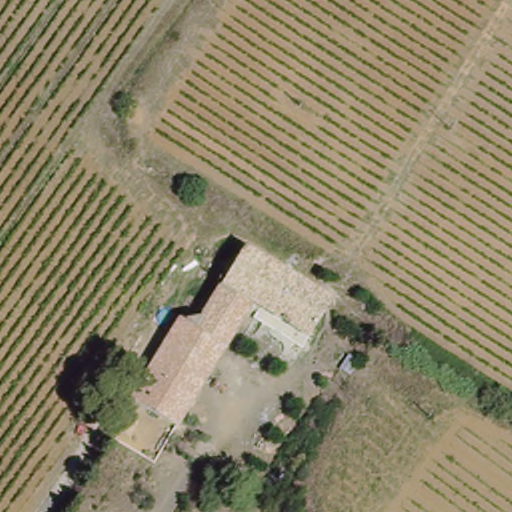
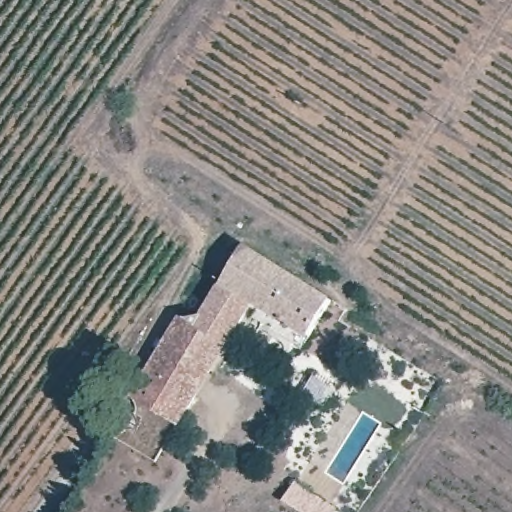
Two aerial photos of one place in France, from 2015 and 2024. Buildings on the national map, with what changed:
unchanged [(232,350),(201,328),(251,248),(339,301),(309,350),(255,315),(232,350)]
unchanged [(152,369),(185,318),(201,328),(232,350),(200,399),(152,369)]
unchanged [(155,423),(161,414),(136,396),(152,369),(200,399),(181,427),(175,436),(155,423)]
new [(300,512),(283,501),(296,482),(337,509),(335,512),(300,512)]

